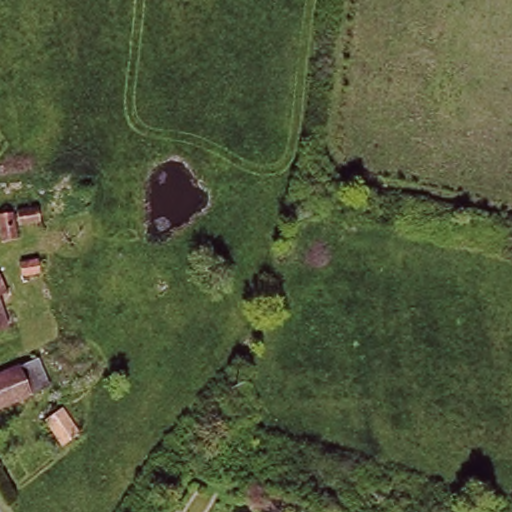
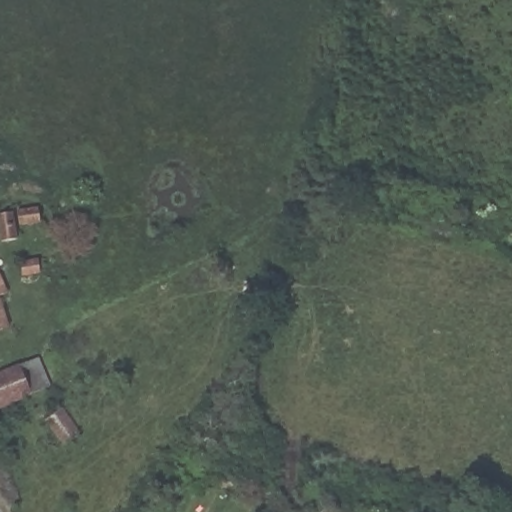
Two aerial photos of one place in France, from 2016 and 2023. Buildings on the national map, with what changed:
unchanged [(37,215),(37,225),(21,228),(19,217),(37,215)]
unchanged [(11,241),(0,243),(0,219),(9,218),(11,241)]
unchanged [(0,300),(0,291),(3,298),(0,300)]
unchanged [(0,334),(0,321),(4,332),(0,334)]
unchanged [(30,397),(0,408),(0,376),(22,369),(30,397)]
unchanged [(76,439),(62,450),(42,421),(58,411),(76,439)]

